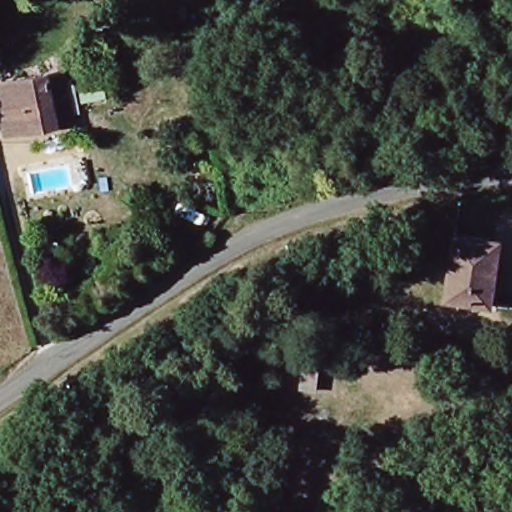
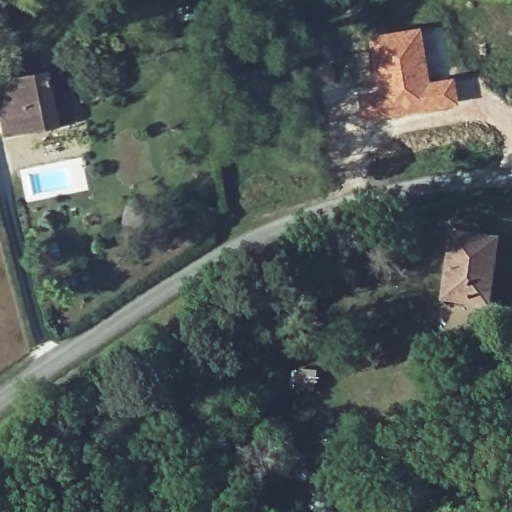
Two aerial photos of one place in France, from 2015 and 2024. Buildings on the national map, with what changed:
new [(420,25),(429,80),(452,75),(457,108),(367,123),(361,90),(370,89),(361,36),(420,25)]
unchanged [(63,126),(0,137),(0,85),(55,75),(63,126)]
unchanged [(442,296),(452,231),(497,239),(486,303),(442,296)]

